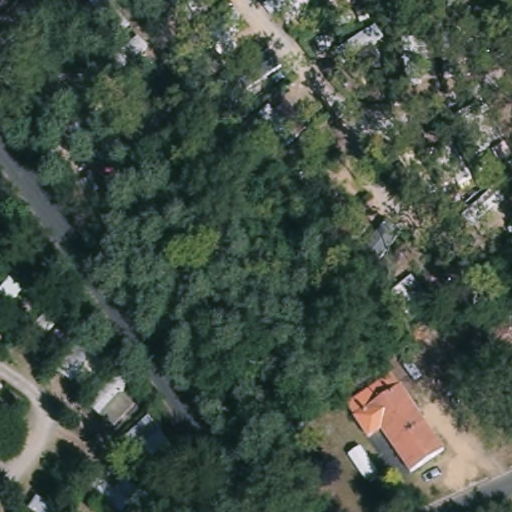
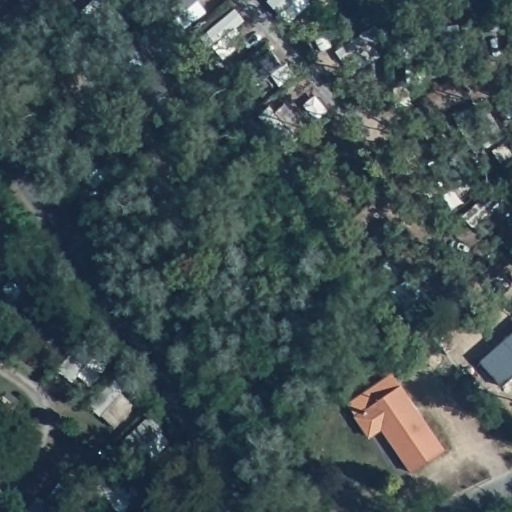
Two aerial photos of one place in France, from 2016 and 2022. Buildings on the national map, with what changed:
new [(480,362),(512,333),(512,377),(502,386),(480,362)]
unchanged [(368,383),(384,404),(398,394),(442,457),(410,479),(378,437),(367,445),(337,403),(368,383)]

